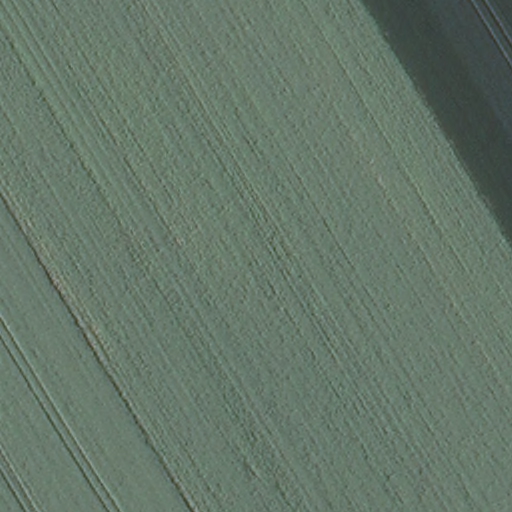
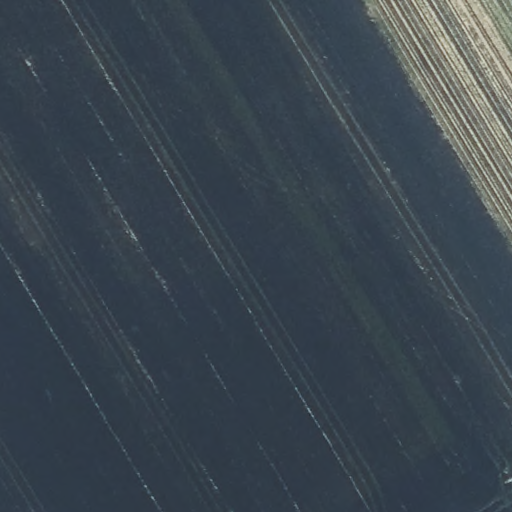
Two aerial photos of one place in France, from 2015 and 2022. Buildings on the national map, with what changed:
[]

